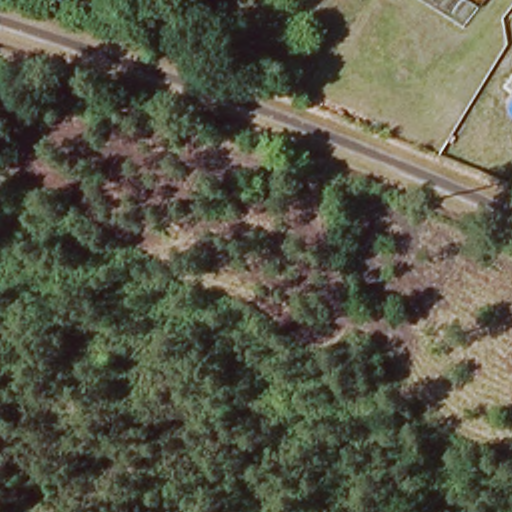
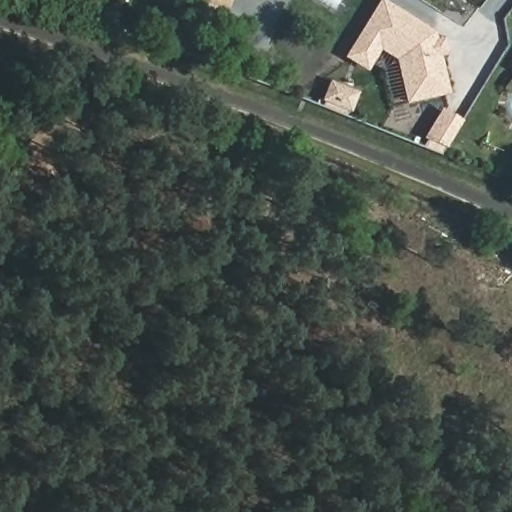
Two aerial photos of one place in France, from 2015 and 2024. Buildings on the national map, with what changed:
new [(223,25),(195,14),(200,0),(231,0),(223,25)]
new [(406,105),(396,62),(380,52),(367,73),(345,59),(380,0),(381,0),(435,33),(437,41),(444,39),(448,57),(440,59),(450,95),(406,105)]
new [(439,111),(456,121),(441,145),(422,138),(439,111)]

